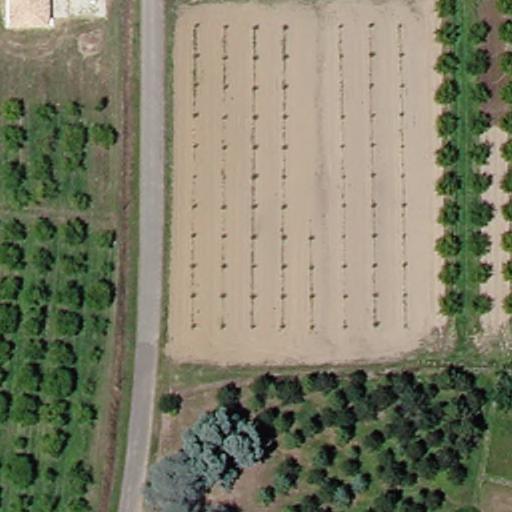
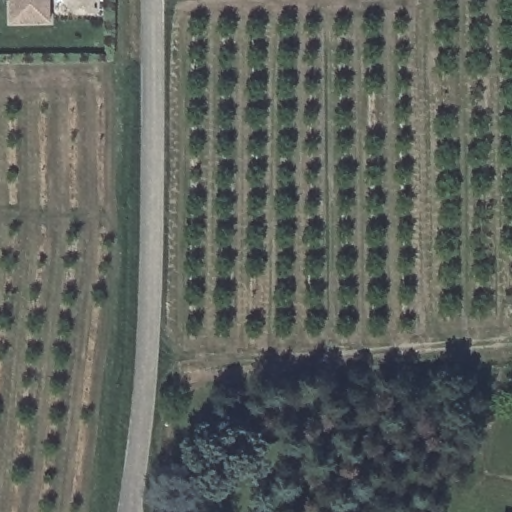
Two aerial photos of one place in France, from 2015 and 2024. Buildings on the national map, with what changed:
unchanged [(9,0),(50,0),(50,23),(10,24),(9,0)]

